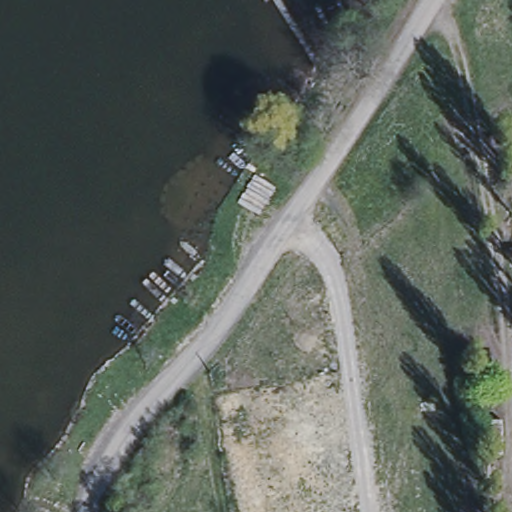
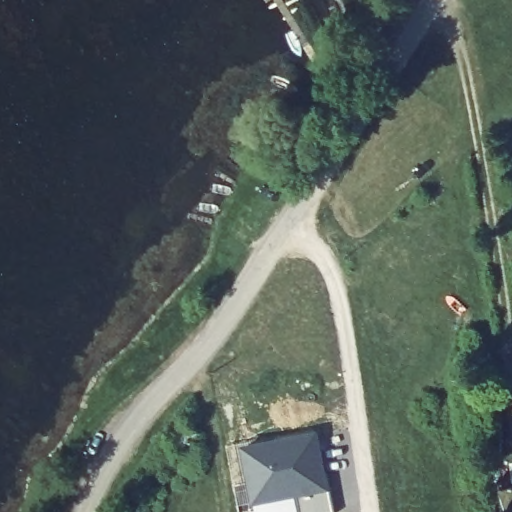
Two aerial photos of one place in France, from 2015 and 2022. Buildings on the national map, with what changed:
unchanged [(492,360),(495,372),(477,375),(475,363),(492,360)]
new [(275,446),(284,444),(284,441),(315,434),(324,473),(328,472),(336,512),(299,512),(296,495),(254,504),(243,449),(275,442),(275,446)]

